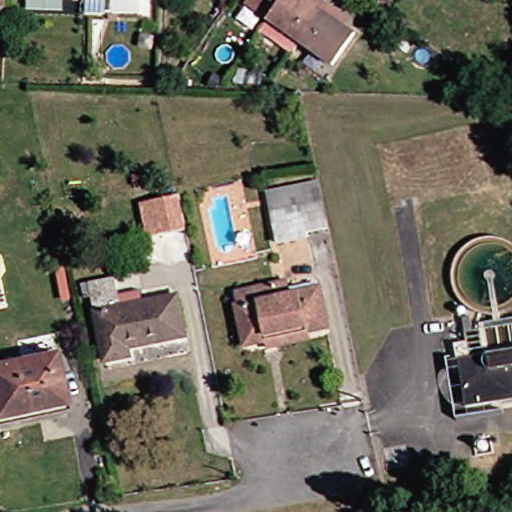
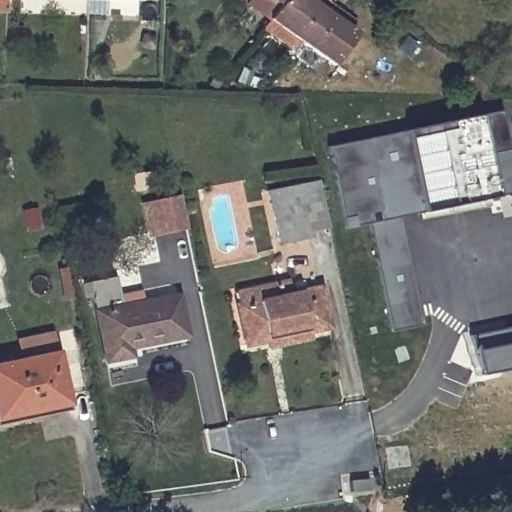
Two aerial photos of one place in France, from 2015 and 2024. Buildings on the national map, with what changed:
unchanged [(143,2),(103,0),(143,0),(143,2)]
unchanged [(275,8),(263,0),(280,0),(275,8)]
unchanged [(310,31),(300,46),(266,21),(275,8),(280,0),(316,0),(327,7),(310,31)]
unchanged [(329,67),(300,46),(310,31),(327,7),(339,16),(346,21),(342,28),(351,36),(329,67)]
new [(497,109),(512,184),(512,194),(396,218),(418,323),(385,330),(363,221),(340,226),(323,145),(497,109)]
unchanged [(299,225),(300,230),(270,235),(259,184),(286,179),(290,196),(313,191),(319,221),(299,225)]
new [(177,196),(183,227),(156,233),(146,235),(140,204),(149,202),(177,196)]
unchanged [(173,294),(181,334),(124,345),(126,354),(101,360),(86,281),(109,277),(115,305),(173,294)]
unchanged [(265,348),(263,340),(241,344),(232,302),(235,301),(233,290),(271,282),(274,295),(316,285),(325,326),(305,330),(307,340),(265,348)]
demolished [(467,408),(457,345),(468,343),(464,317),(472,316),(475,327),(512,322),(512,401),(467,408)]
unchanged [(0,417),(0,362),(57,350),(68,402),(0,417)]

